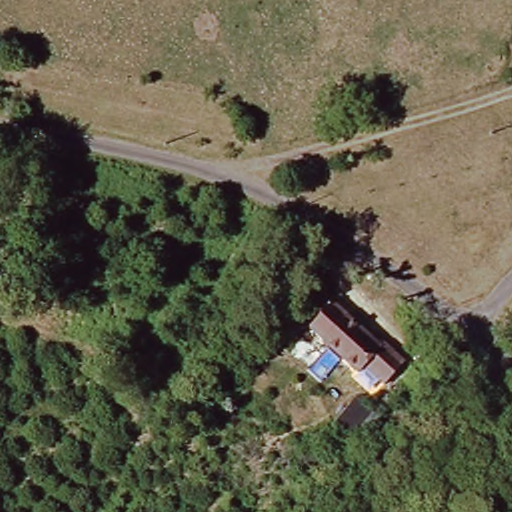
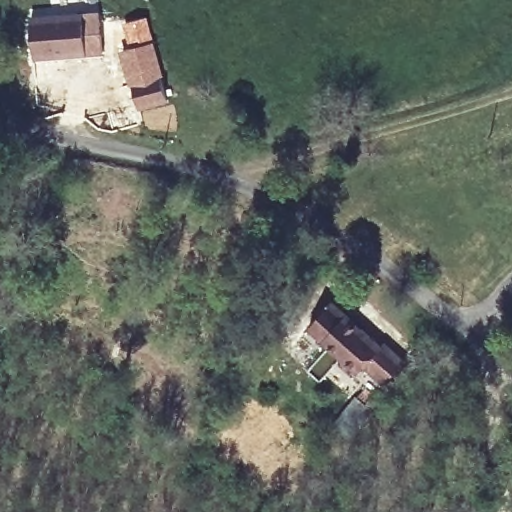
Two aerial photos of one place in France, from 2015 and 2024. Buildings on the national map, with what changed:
new [(35,61),(32,16),(99,12),(104,54),(35,61)]
new [(168,102),(137,110),(120,52),(154,43),(168,102)]
unchanged [(388,393),(367,375),(362,380),(309,333),(335,302),(409,365),(388,393)]
unchanged [(335,428),(359,398),(377,411),(352,442),(335,428)]

